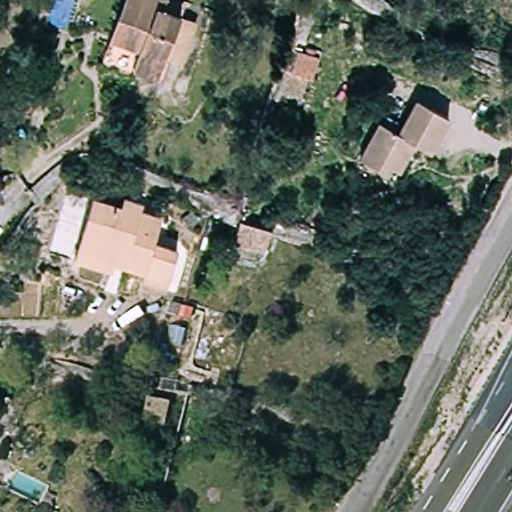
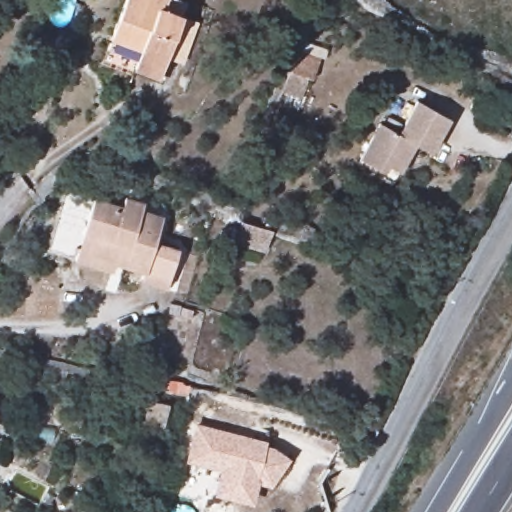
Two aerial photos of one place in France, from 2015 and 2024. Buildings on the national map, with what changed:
unchanged [(163,7),(145,52),(114,42),(129,0),(166,0),(163,7)]
unchanged [(185,16),(163,7),(166,0),(183,0),(198,6),(195,20),(203,23),(190,67),(171,62),(185,16)]
unchanged [(145,52),(163,7),(185,16),(171,62),(165,81),(137,72),(145,52)]
unchanged [(308,81),(300,104),(280,97),(288,75),(308,81)]
unchanged [(378,122),(397,133),(416,100),(450,118),(431,153),(415,145),(400,172),(388,166),(383,173),(358,159),(378,122)]
unchanged [(83,202),(112,211),(115,201),(138,207),(135,217),(153,222),(148,242),(172,248),(160,288),(135,281),(139,271),(110,261),(106,270),(66,257),(83,202)]
unchanged [(238,232),(240,225),(272,235),(263,257),(233,249),(234,247),(225,245),(227,230),(238,232)]
unchanged [(150,406),(151,402),(171,407),(167,430),(128,422),(132,402),(150,406)]
new [(265,441),(265,442),(288,459),(268,488),(261,484),(254,490),(252,505),(213,496),(218,470),(185,462),(194,423),(265,441)]

